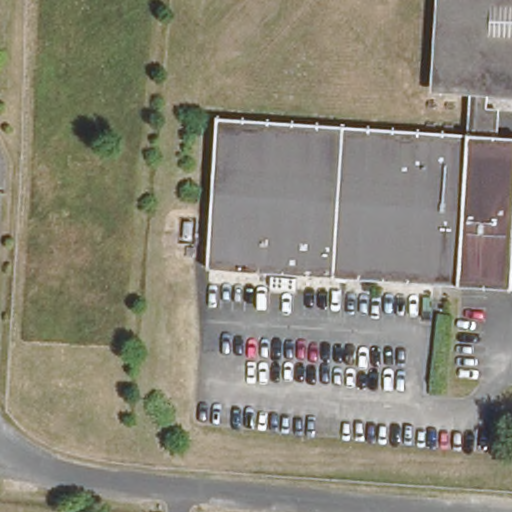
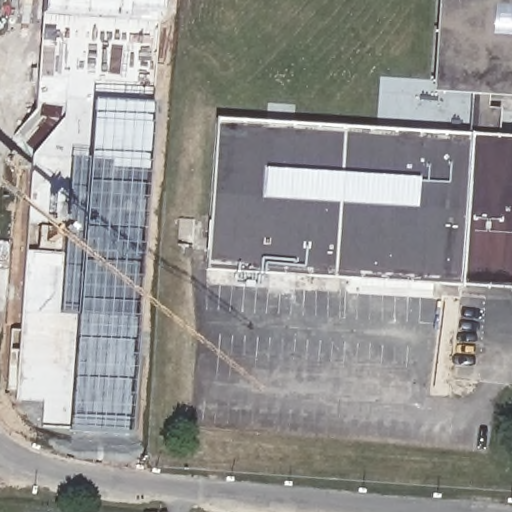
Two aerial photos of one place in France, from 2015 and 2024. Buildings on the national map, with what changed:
new [(150,104),(127,434),(37,427),(39,402),(14,400),(28,157),(60,120),(31,111),(42,10),(43,0),(160,0),(159,13),(150,104)]
unchanged [(445,0),(512,0),(512,91),(485,90),(468,89),(440,87),(445,0)]
unchanged [(483,113),(494,113),(492,140),(512,141),(512,217),(507,292),(203,273),(212,122),(465,138),(468,89),(485,90),(483,113)]

